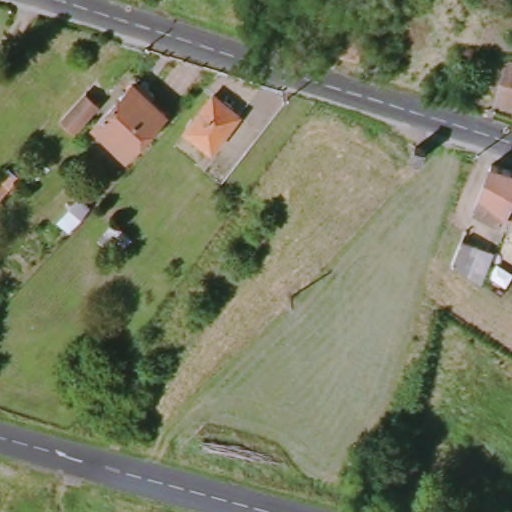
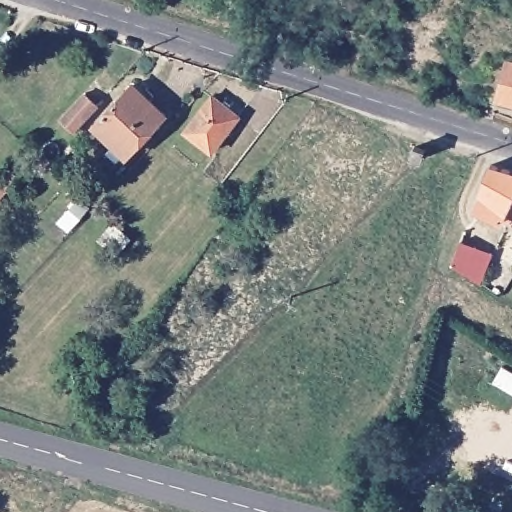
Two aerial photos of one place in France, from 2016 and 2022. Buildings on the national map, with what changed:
unchanged [(341,53),(350,28),(374,35),(365,62),(341,53)]
unchanged [(502,62),(512,64),(512,103),(495,99),(502,62)]
unchanged [(123,153),(92,122),(128,83),(161,114),(123,153)]
unchanged [(70,135),(57,124),(82,96),(95,107),(73,131),(70,135)]
unchanged [(210,151),(185,130),(213,96),(237,117),(210,151)]
unchanged [(410,157),(413,145),(425,148),(421,160),(410,157)]
unchanged [(501,219),(473,207),(490,164),(512,171),(512,216),(505,212),(501,219)]
unchanged [(61,220),(75,205),(85,213),(70,228),(61,220)]
unchanged [(453,263),(461,238),(501,258),(483,284),(453,263)]
unchanged [(386,465),(388,457),(396,459),(394,467),(386,465)]

